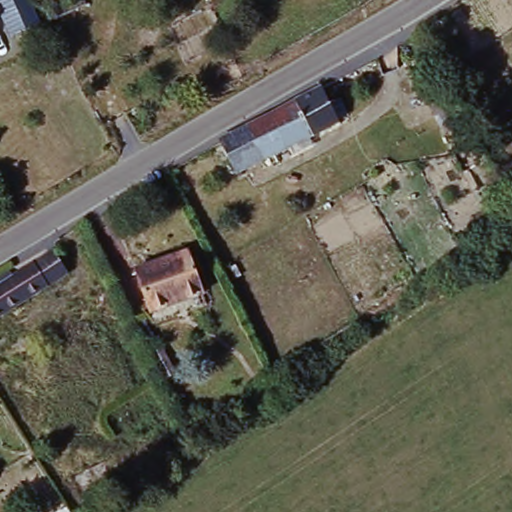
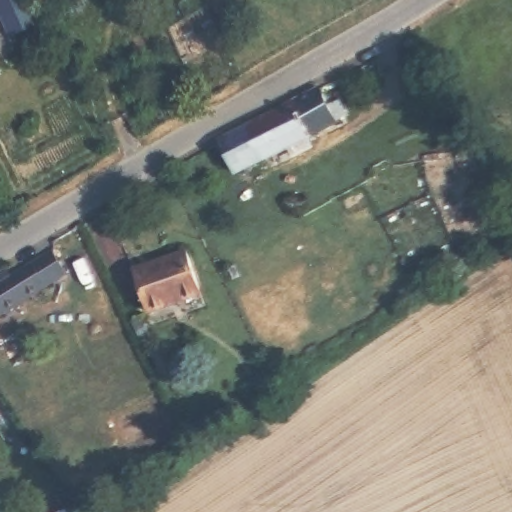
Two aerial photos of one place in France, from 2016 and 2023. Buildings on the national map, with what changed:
unchanged [(45,21),(18,33),(4,0),(36,0),(45,21)]
unchanged [(46,1),(46,0),(48,0),(46,1)]
unchanged [(228,136),(251,124),(327,85),(341,117),(265,152),(242,164),(228,136)]
unchanged [(190,254),(206,297),(153,312),(139,272),(190,254)]
unchanged [(0,284),(0,280),(13,272),(16,278),(58,255),(72,277),(0,319),(0,288),(1,287),(0,284)]

